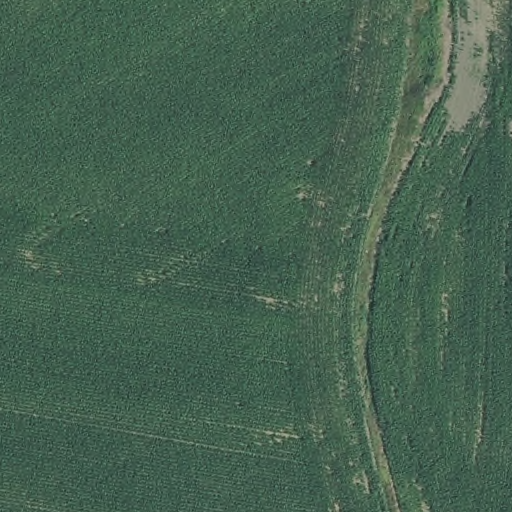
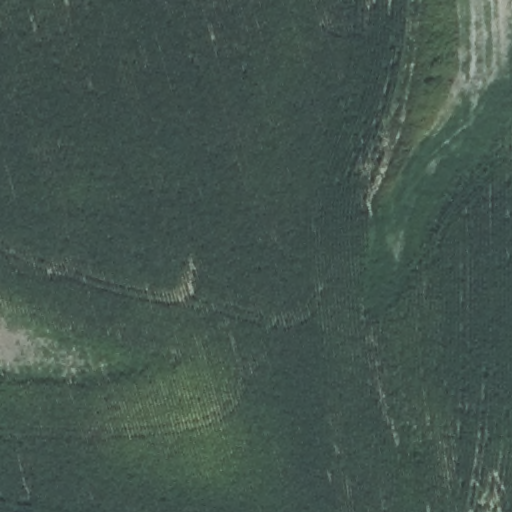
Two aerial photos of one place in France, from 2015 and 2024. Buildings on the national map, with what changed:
[]

